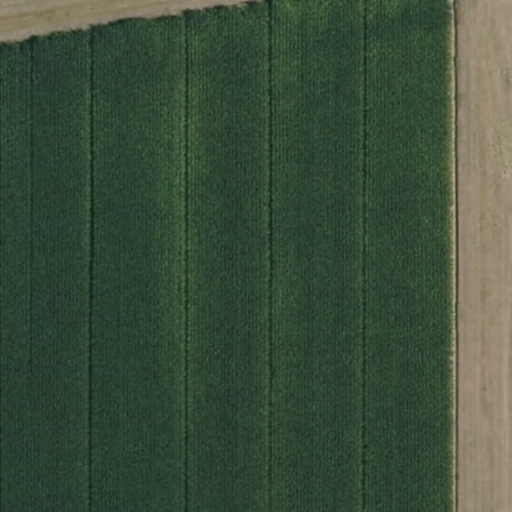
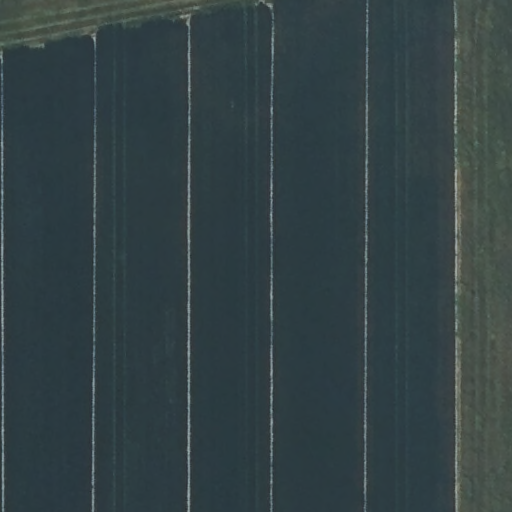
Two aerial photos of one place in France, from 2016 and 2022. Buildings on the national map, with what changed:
[]

